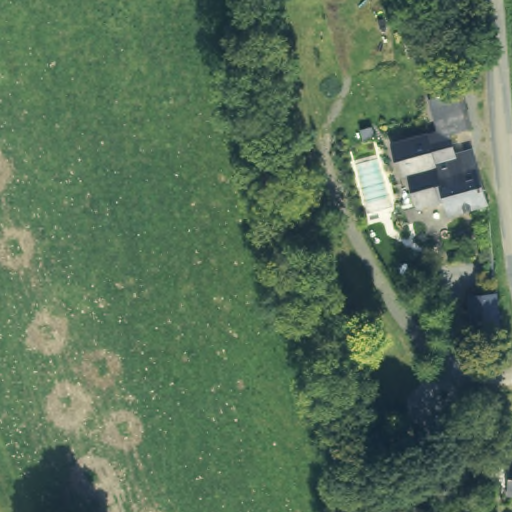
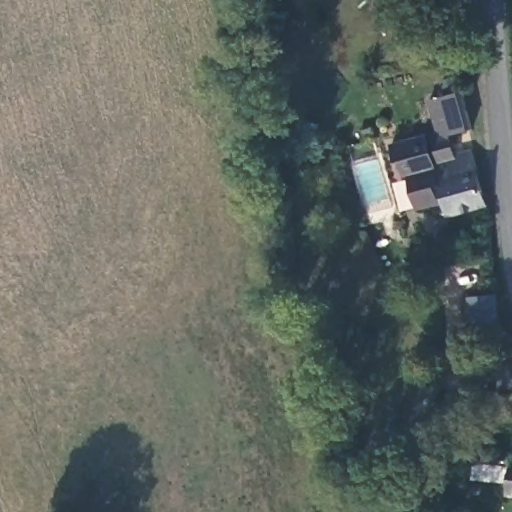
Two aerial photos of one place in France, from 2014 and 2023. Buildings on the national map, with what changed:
unchanged [(486,204),(448,213),(444,200),(432,204),(417,209),(406,172),(403,173),(400,164),(397,156),(395,157),(392,145),(438,131),(430,98),(438,96),(461,90),(471,127),(448,134),(453,150),(454,153),(471,149),(486,204)]
unchanged [(493,293),(497,326),(473,327),(470,296),(493,293)]
unchanged [(502,484),(473,482),(475,458),(512,463),(512,496),(501,495),(502,484)]

